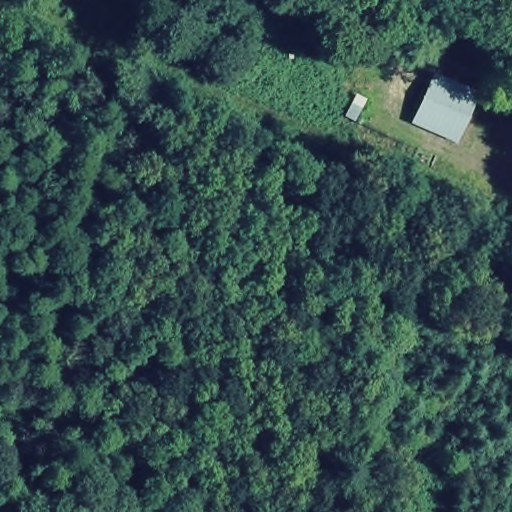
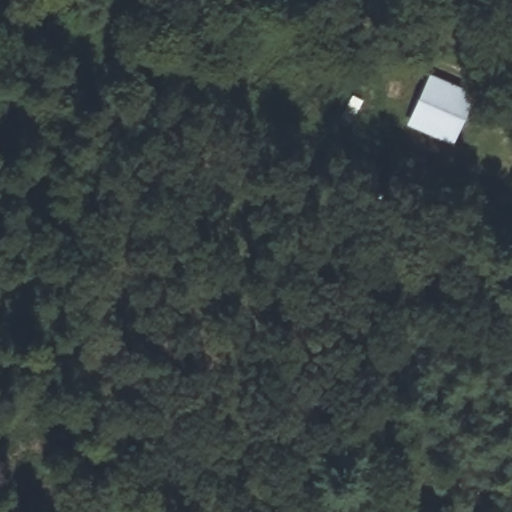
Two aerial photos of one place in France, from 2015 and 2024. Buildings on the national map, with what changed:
unchanged [(475,92),(453,143),(408,124),(428,74),(475,92)]

